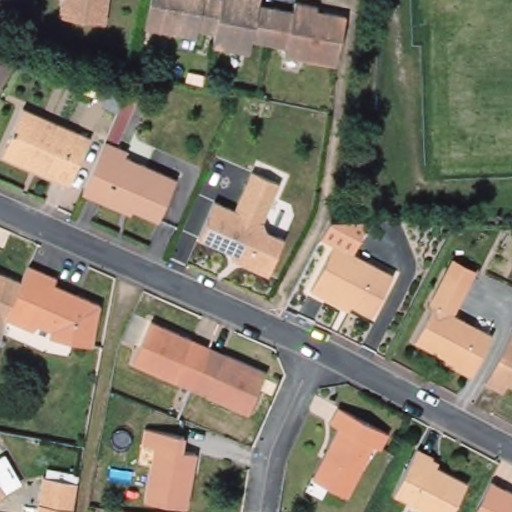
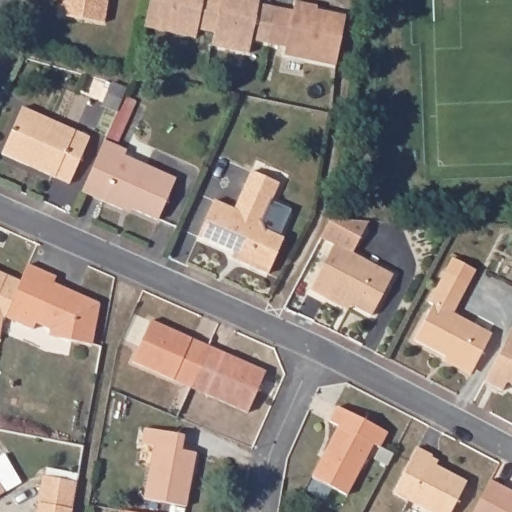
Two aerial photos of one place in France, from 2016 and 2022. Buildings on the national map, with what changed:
unchanged [(61,0),(67,1),(68,0),(107,0),(103,23),(59,17),(61,0)]
unchanged [(257,5),(274,8),(291,11),(293,1),(310,4),(316,6),(315,11),(323,12),(344,16),(335,65),(284,57),(285,48),(267,45),(250,42),(248,55),(212,50),(214,35),(195,32),(194,41),(142,32),(148,0),(258,0),(257,5)]
unchanged [(20,108),(87,135),(68,182),(0,154),(20,108)]
unchanged [(102,140),(125,149),(122,155),(173,177),(155,218),(122,203),(120,208),(79,190),(102,140)]
unchanged [(227,247),(200,236),(215,199),(236,208),(247,183),(253,169),(281,182),(275,196),(264,221),(266,229),(284,237),(269,272),(244,261),(233,256),(235,251),(227,247)]
unchanged [(326,295),(310,286),(334,241),(394,272),(373,312),(352,302),(349,307),(326,295)]
unchanged [(491,336),(472,371),(414,340),(432,305),(429,303),(445,272),(453,258),(475,270),(468,284),(452,315),(491,336)]
unchanged [(12,307),(32,263),(59,275),(57,281),(55,285),(77,294),(79,291),(102,302),(95,343),(54,336),(54,327),(40,320),(37,328),(10,315),(12,307)]
unchanged [(0,292),(0,276),(6,278),(0,292)]
unchanged [(245,416),(203,398),(205,393),(189,386),(173,379),(170,383),(130,365),(148,324),(189,342),(206,349),(222,357),(263,374),(245,416)]
unchanged [(512,330),(512,386),(507,383),(503,392),(484,383),(512,330)]
unchanged [(341,428),(333,424),(341,409),(392,435),(384,450),(377,447),(352,497),(315,479),(341,428)]
unchanged [(142,427),(182,435),(179,449),(194,452),(184,506),(142,498),(148,463),(152,445),(140,443),(142,427)]
unchanged [(431,459),(427,466),(464,485),(451,512),(420,512),(391,496),(415,451),(431,459)]
unchanged [(71,512),(39,512),(46,475),(77,481),(71,512)]
unchanged [(512,491),(512,512),(471,512),(488,479),(512,491)]
unchanged [(0,498),(0,487),(5,495),(0,498)]
unchanged [(138,512),(122,512),(122,509),(138,512)]

